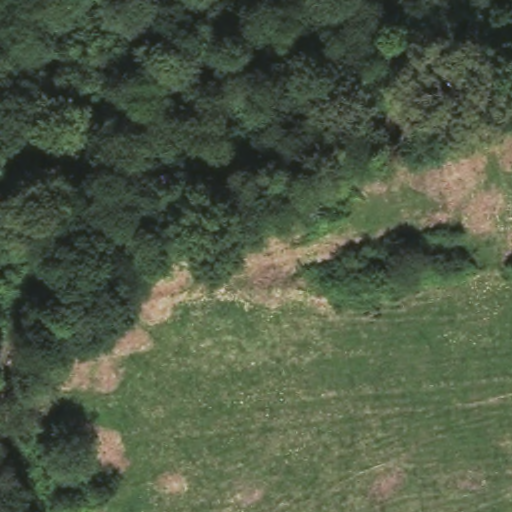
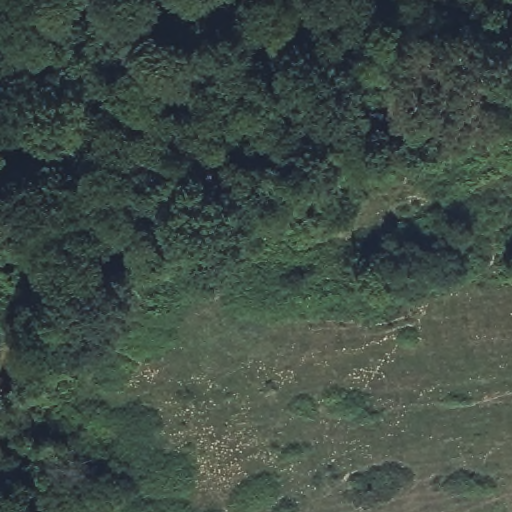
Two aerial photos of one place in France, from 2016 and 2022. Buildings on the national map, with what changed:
unchanged [(196,192),(165,199),(156,170),(188,159),(196,192)]

